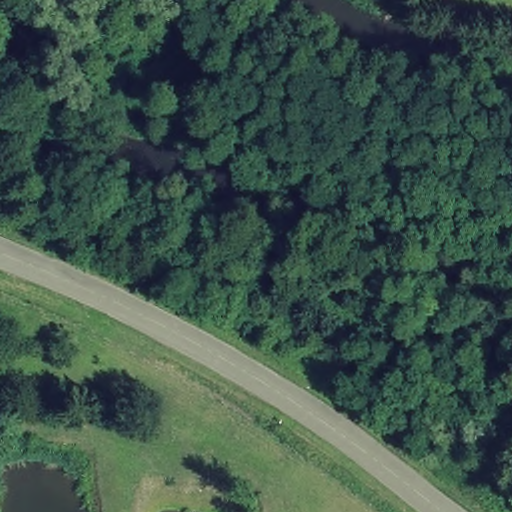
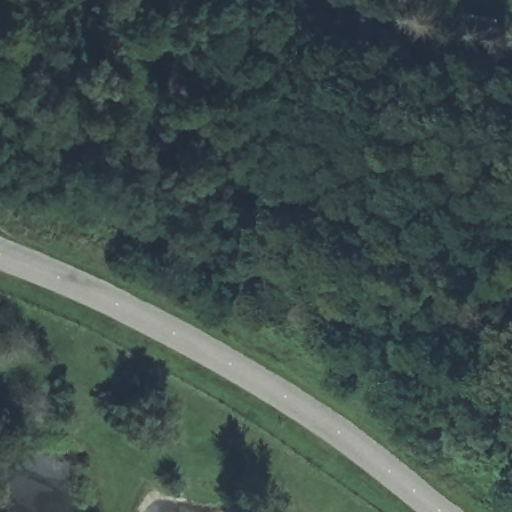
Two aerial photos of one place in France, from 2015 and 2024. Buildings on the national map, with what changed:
unchanged [(385,0),(388,0),(386,1),(385,0)]

